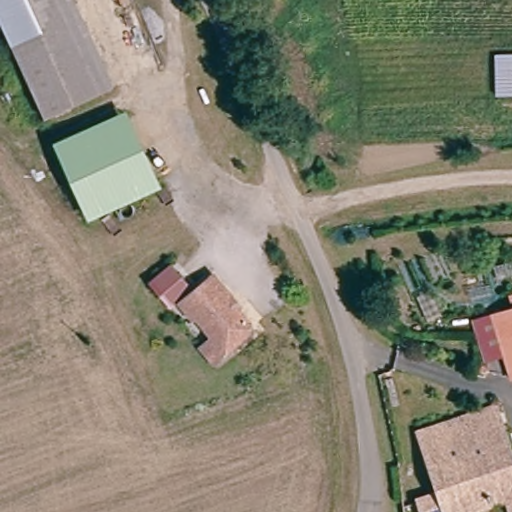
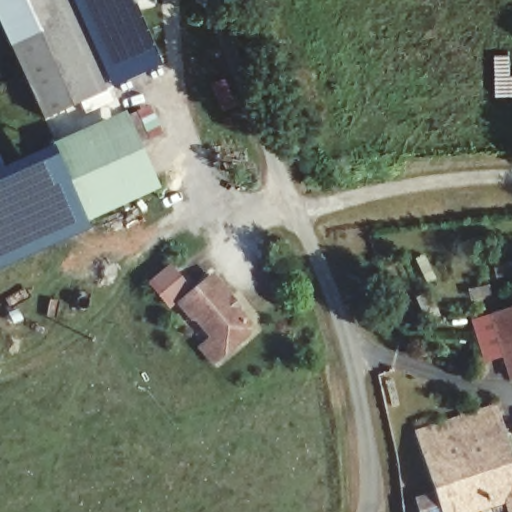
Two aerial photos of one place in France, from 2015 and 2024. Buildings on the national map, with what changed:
unchanged [(0,24),(0,0),(73,0),(100,63),(30,94),(0,24)]
new [(105,75),(100,63),(73,0),(130,0),(160,66),(111,88),(105,75)]
unchanged [(491,98),(492,56),(512,55),(512,99),(491,98)]
unchanged [(113,92),(41,122),(30,94),(100,63),(113,92)]
unchanged [(161,193),(91,226),(56,146),(129,114),(161,193)]
new [(91,226),(92,228),(0,270),(0,171),(56,146),(91,226)]
unchanged [(185,296),(167,311),(147,286),(167,272),(185,296)]
unchanged [(195,358),(210,345),(195,325),(188,326),(177,312),(176,311),(212,282),(222,295),(240,317),(235,323),(248,341),(222,361),(207,373),(195,358)]
unchanged [(497,325),(512,321),(512,376),(497,325)]
unchanged [(501,512),(499,506),(483,512),(416,512),(436,506),(414,434),(495,406),(512,456),(512,512),(501,512)]

